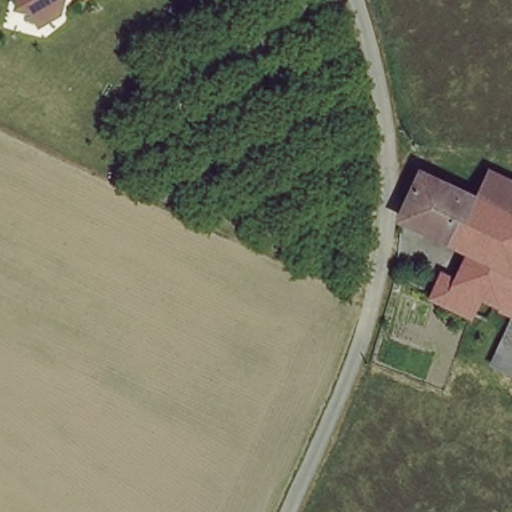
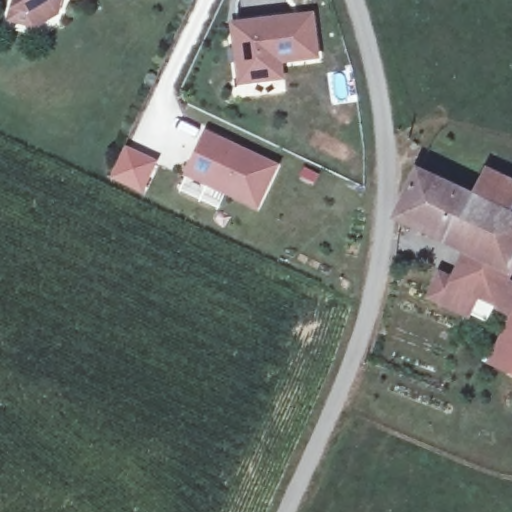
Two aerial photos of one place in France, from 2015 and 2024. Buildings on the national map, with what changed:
unchanged [(38,6),(37,12),(14,5),(16,0),(61,0),(58,11),(38,6)]
new [(286,81),(238,87),(231,23),(316,12),(321,60),(284,64),(286,81)]
new [(206,130),(282,164),(260,211),(185,176),(206,130)]
new [(155,162),(141,191),(113,178),(125,149),(155,162)]
unchanged [(464,313),(439,302),(448,282),(453,282),(467,246),(395,212),(415,172),(475,199),(512,215),(512,268),(507,278),(512,281),(512,298),(506,308),(496,304),(486,322),(464,313)]
unchanged [(485,179),(512,190),(512,215),(475,199),(485,179)]
unchanged [(502,337),(512,317),(512,341),(502,337)]
unchanged [(492,359),(502,337),(512,341),(512,369),(492,359)]

